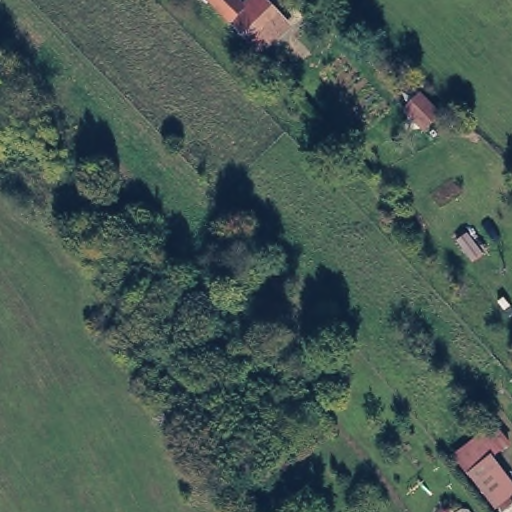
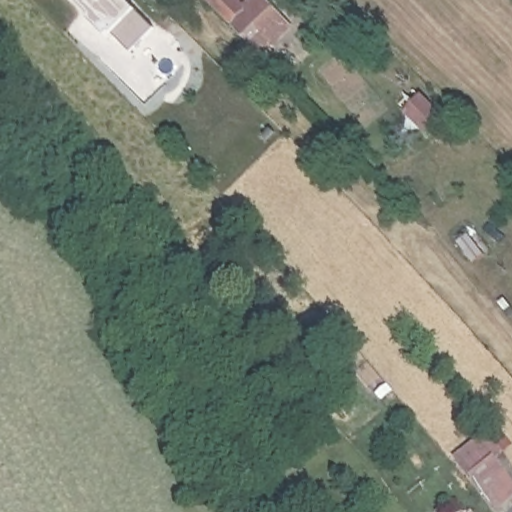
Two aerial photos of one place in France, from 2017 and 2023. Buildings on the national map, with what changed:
new [(130,55),(111,34),(106,39),(89,21),(91,18),(74,0),(124,0),(155,31),(130,55)]
unchanged [(265,54),(214,0),(241,0),(248,8),(257,0),(266,0),(286,19),(294,28),(282,38),(265,54)]
new [(422,98),(441,116),(426,130),(407,112),(422,98)]
unchanged [(496,510),(490,503),(464,470),(451,454),(479,432),(492,448),(485,454),(511,486),(502,494),(507,501),(496,510)]

